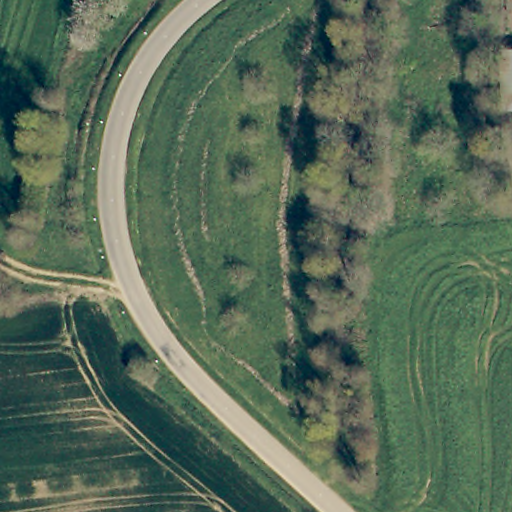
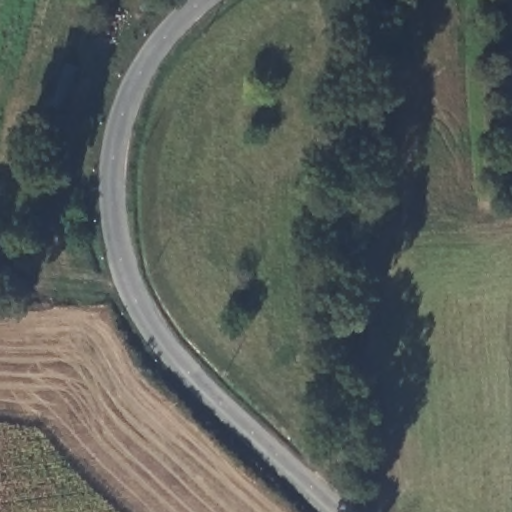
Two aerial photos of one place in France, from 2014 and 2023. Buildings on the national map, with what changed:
unchanged [(503,57),(512,57),(512,96),(502,96),(503,57)]

